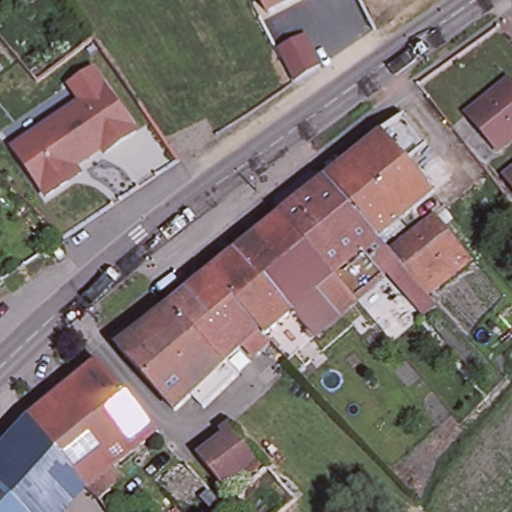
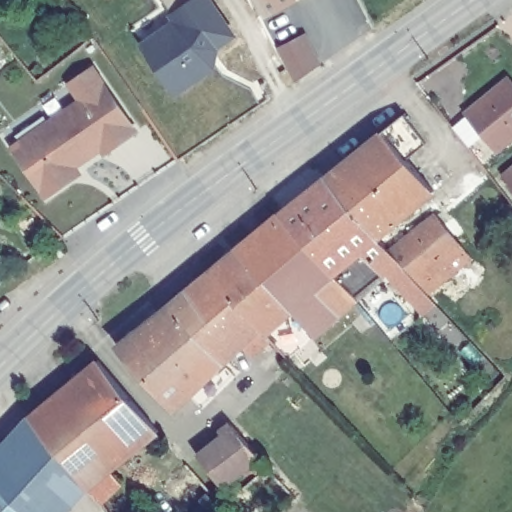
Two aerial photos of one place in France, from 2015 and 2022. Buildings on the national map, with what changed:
new [(220,49),(216,71),(175,98),(137,43),(171,20),(167,15),(171,11),(164,0),(214,0),(239,37),(220,49)]
unchanged [(255,0),(288,0),(262,14),(255,0)]
new [(325,64),(296,80),(278,47),(306,32),(325,64)]
unchanged [(66,84),(93,65),(136,132),(103,156),(100,152),(78,167),(83,175),(43,201),(9,148),(77,101),(66,84)]
unchanged [(502,79),(512,91),(512,131),(487,150),(457,114),(502,79)]
unchanged [(393,117),(416,144),(395,160),(424,192),(367,240),(313,181),(373,134),(393,117)]
unchanged [(499,181),(512,170),(512,197),(499,181)]
unchanged [(367,240),(379,253),(418,295),(407,305),(380,275),(347,301),(270,215),(313,181),(367,240)]
unchanged [(192,410),(181,397),(165,411),(108,349),(161,307),(199,275),(270,215),(347,301),(303,338),(283,311),(256,336),(260,342),(244,356),(235,347),(213,367),(223,380),(192,410)]
unchanged [(379,253),(425,215),(462,260),(418,295),(379,253)]
unchanged [(93,360),(154,429),(106,467),(117,480),(95,498),(83,486),(85,485),(28,414),(93,360)]
unchanged [(83,486),(58,512),(23,512),(0,489),(0,444),(28,414),(85,485),(83,486)]
unchanged [(215,433),(212,428),(222,421),(251,455),(230,473),(227,470),(222,475),(225,477),(215,485),(188,453),(215,433)]
unchanged [(251,455),(288,497),(271,512),(236,512),(222,495),(232,487),(225,477),(230,473),(251,455)]
unchanged [(0,489),(23,512),(0,512),(0,489)]

